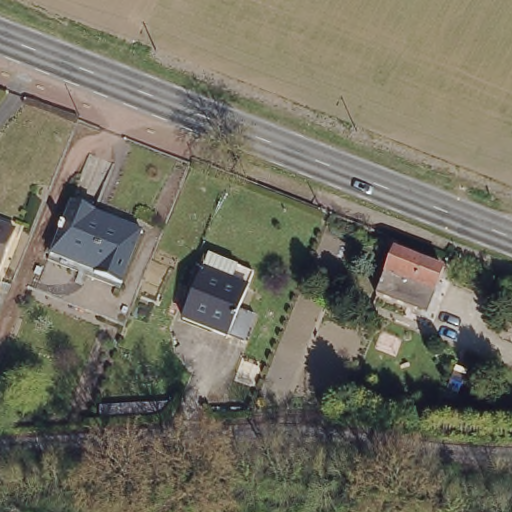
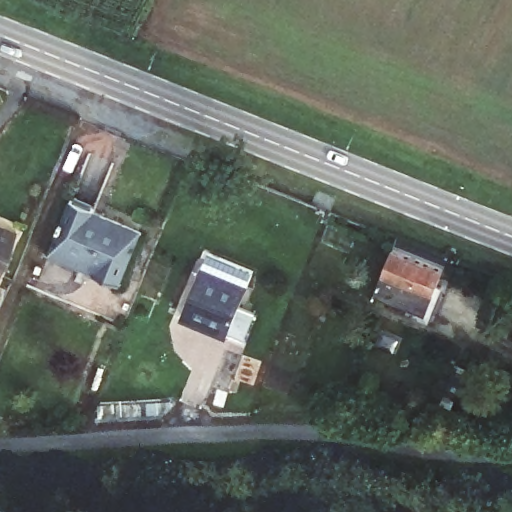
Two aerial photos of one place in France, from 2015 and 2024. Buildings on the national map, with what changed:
unchanged [(65,189),(88,197),(85,202),(138,222),(118,274),(91,265),(93,260),(46,241),(65,189)]
unchanged [(0,254),(0,224),(10,228),(0,254)]
unchanged [(394,247),(438,263),(419,308),(376,291),(394,247)]
unchanged [(178,315),(196,270),(202,254),(218,261),(243,271),(238,287),(221,333),(178,315)]

